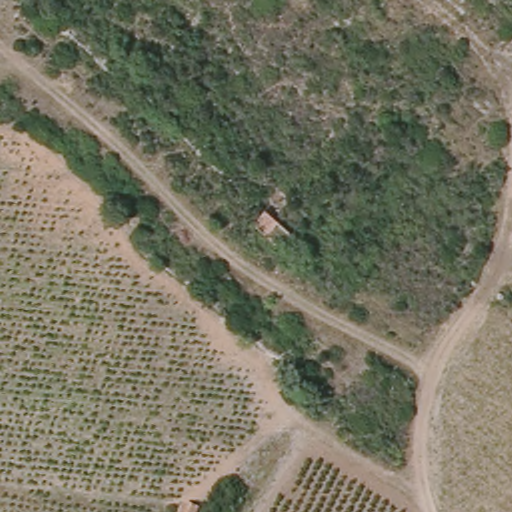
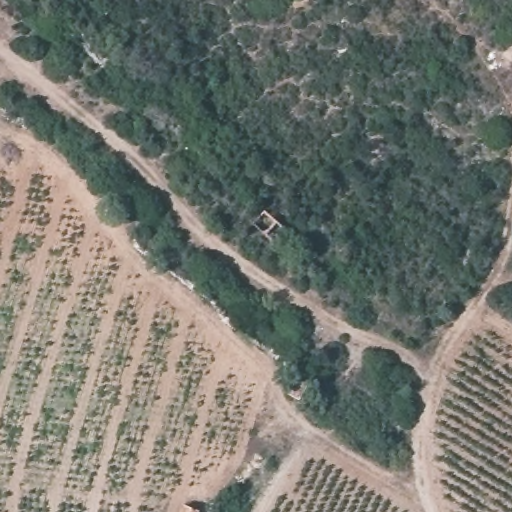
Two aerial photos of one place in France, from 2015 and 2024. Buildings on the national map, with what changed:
unchanged [(275,245),(247,221),(259,208),(287,233),(275,245)]
unchanged [(313,383),(305,402),(285,395),(295,376),(313,383)]
unchanged [(199,506),(196,512),(175,512),(181,499),(199,506)]

